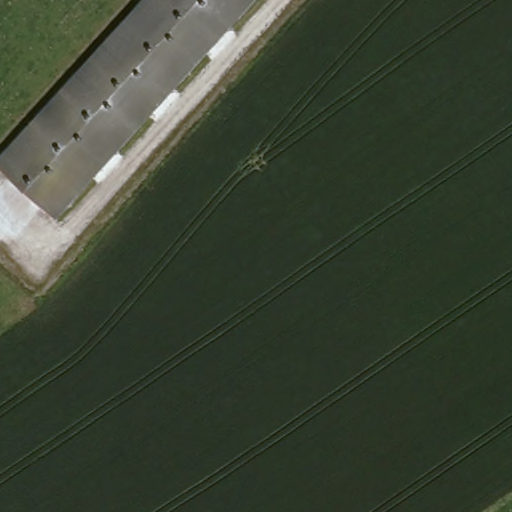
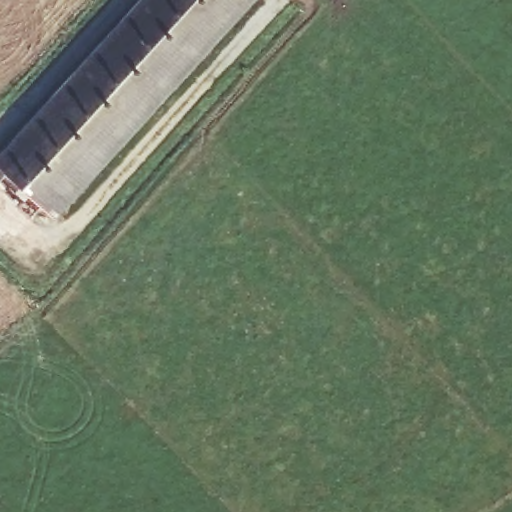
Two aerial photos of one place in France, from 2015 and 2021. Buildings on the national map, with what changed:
unchanged [(56,224),(0,175),(0,162),(144,0),(255,0),(56,224)]

